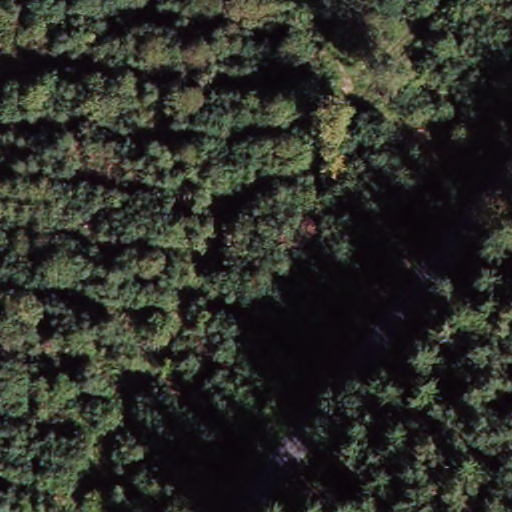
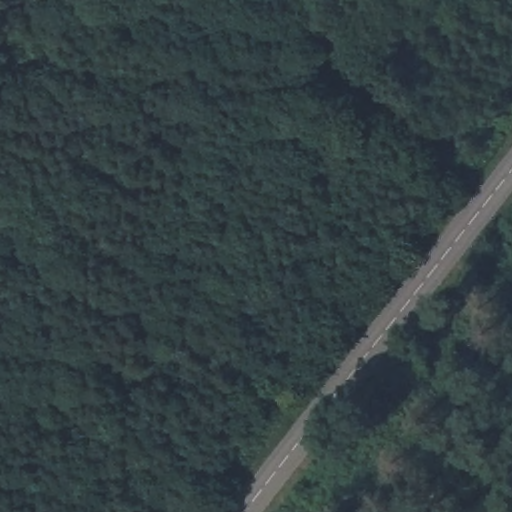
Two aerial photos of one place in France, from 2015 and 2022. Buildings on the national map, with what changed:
[]

